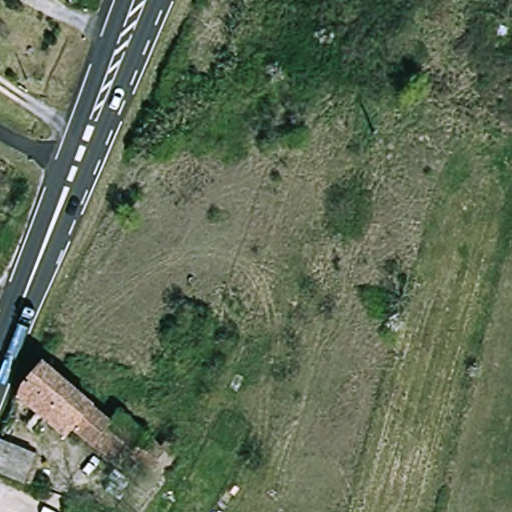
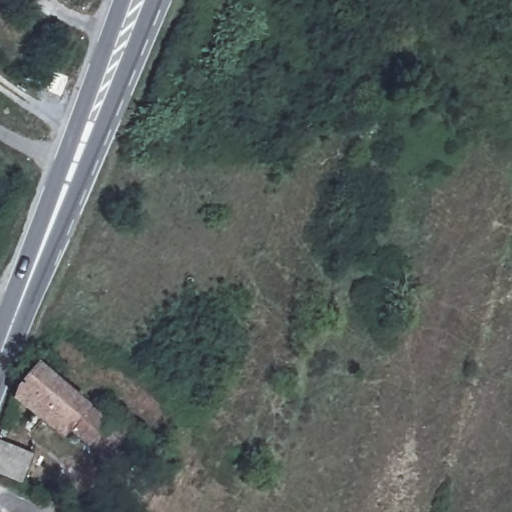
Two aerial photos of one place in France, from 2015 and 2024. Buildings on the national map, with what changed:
unchanged [(125,456),(116,467),(69,428),(63,437),(21,403),(13,398),(19,383),(38,363),(107,420),(114,411),(159,447),(163,442),(168,446),(146,473),(125,456)]
unchanged [(23,482),(0,473),(0,441),(33,454),(31,458),(38,461),(29,484),(23,482)]

